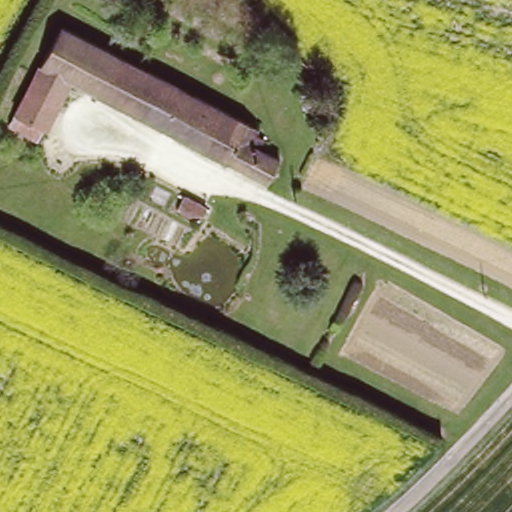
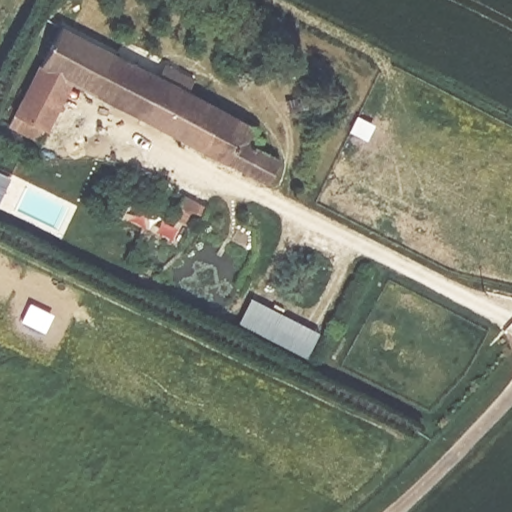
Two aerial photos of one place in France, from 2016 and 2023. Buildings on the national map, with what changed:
unchanged [(258,129),(254,136),(264,141),(259,151),(279,162),(267,185),(73,84),(48,131),(43,128),(38,140),(8,125),(60,26),(258,129)]
unchanged [(183,196),(206,208),(199,221),(176,209),(183,196)]
new [(319,333),(303,365),(233,330),(249,299),(319,333)]

